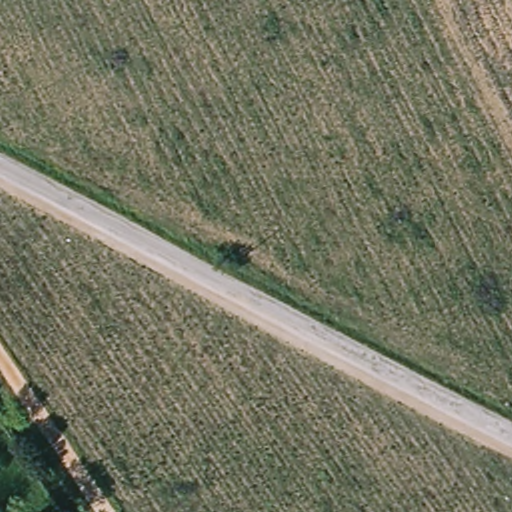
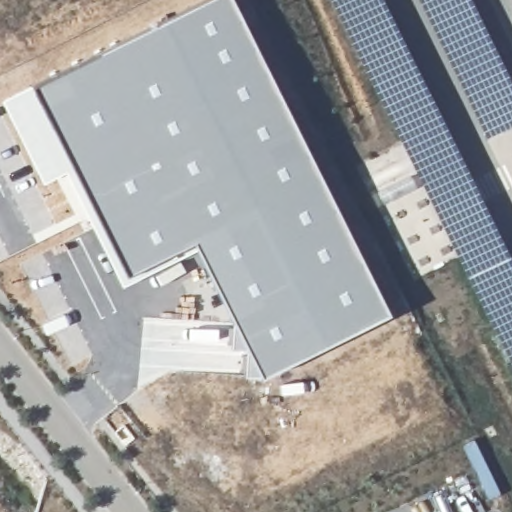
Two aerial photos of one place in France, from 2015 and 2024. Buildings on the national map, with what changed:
new [(193,242),(127,276),(30,84),(203,0),(232,0),(388,315),(260,377),(193,242)]
new [(452,245),(330,0),(382,0),(424,86),(420,88),(425,98),(429,96),(512,262),(512,371),(500,348),(452,245)]
new [(470,0),(512,85),(512,125),(486,138),(467,99),(418,0),(470,0)]

